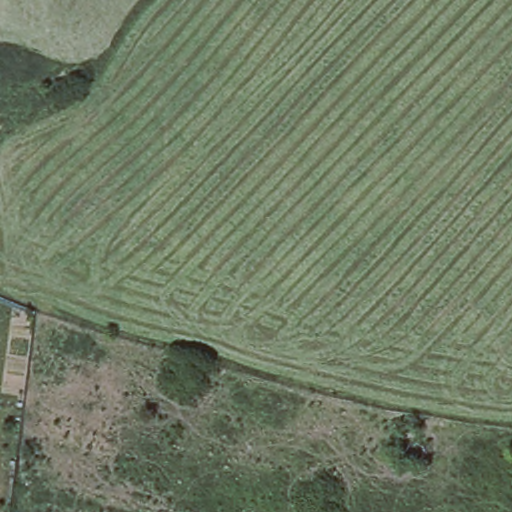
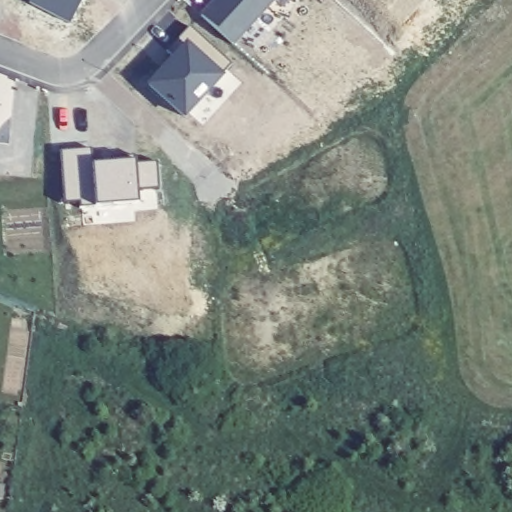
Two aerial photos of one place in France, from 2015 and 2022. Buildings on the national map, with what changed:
new [(70,21),(30,2),(31,0),(82,0),(70,21)]
new [(235,45),(201,13),(213,0),(274,0),(235,45)]
new [(233,63),(223,73),(225,74),(186,116),(149,82),(183,43),(179,39),(191,25),(233,63)]
new [(92,147),(91,162),(136,158),(136,164),(157,162),(158,189),(138,189),(138,200),(97,202),(97,205),(80,205),(80,201),(66,201),(60,149),(92,147)]

